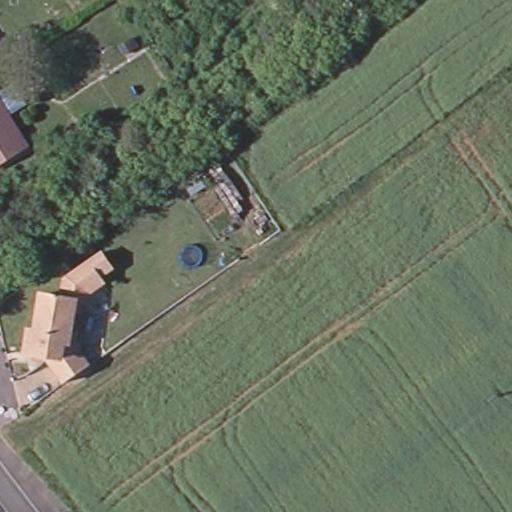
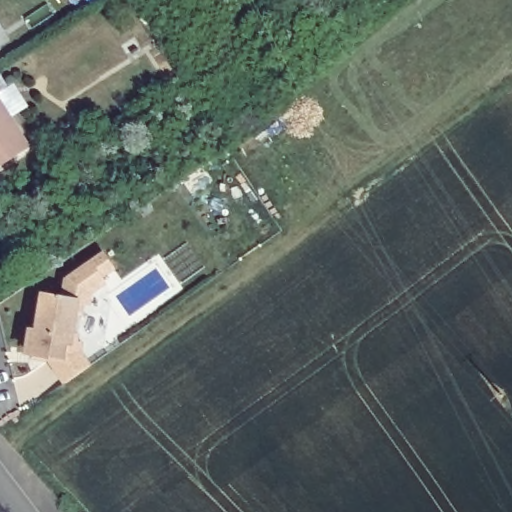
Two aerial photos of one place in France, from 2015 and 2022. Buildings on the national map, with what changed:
unchanged [(0,107),(0,104),(1,106),(0,107)]
unchanged [(0,182),(0,114),(30,162),(0,182)]
unchanged [(108,270),(95,279),(99,285),(85,295),(83,306),(78,305),(72,346),(77,346),(76,354),(86,369),(61,385),(44,361),(45,360),(23,356),(27,334),(33,335),(39,299),(59,302),(63,279),(98,255),(108,270)]

